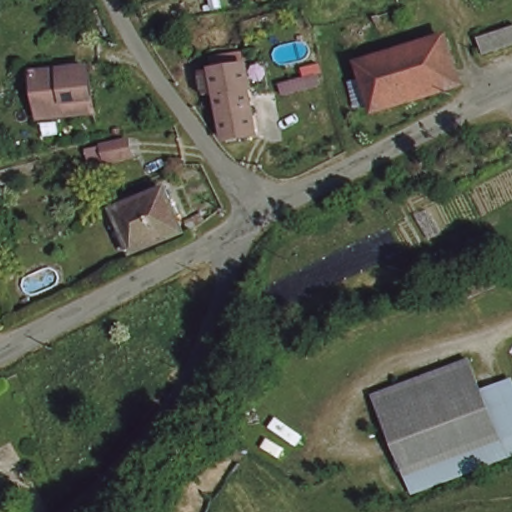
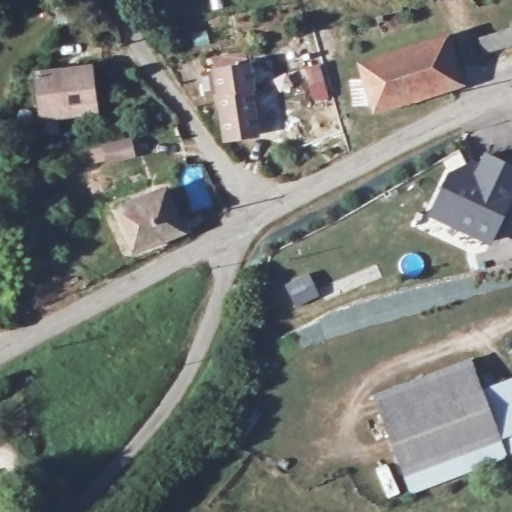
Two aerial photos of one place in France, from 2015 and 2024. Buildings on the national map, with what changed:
unchanged [(476,44),(512,33),(512,55),(482,64),(476,44)]
unchanged [(455,69),(442,72),(448,93),(371,116),(356,71),(447,43),(455,69)]
unchanged [(256,139),(220,144),(209,68),(246,63),(256,139)]
unchanged [(41,106),(37,75),(65,72),(66,78),(77,77),(76,70),(91,69),(96,113),(57,118),(43,120),(41,106)]
unchanged [(133,137),(138,156),(93,166),(89,145),(133,137)]
new [(429,227),(448,188),(471,177),(479,180),(484,169),(512,181),(512,202),(498,230),(488,253),(471,245),(429,227)]
unchanged [(182,229),(134,254),(114,216),(163,191),(182,229)]
unchanged [(479,390),(499,440),(402,477),(372,395),(468,358),(479,390)]
unchanged [(508,380),(512,390),(512,435),(499,440),(479,390),(508,380)]
unchanged [(506,459),(409,494),(402,477),(499,440),(506,459)]

